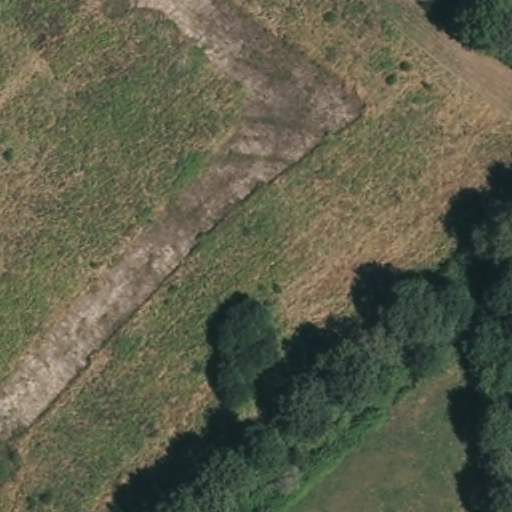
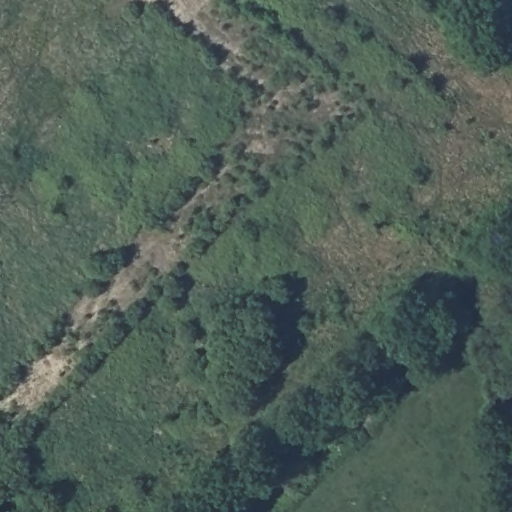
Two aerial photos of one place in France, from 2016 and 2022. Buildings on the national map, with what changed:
[]

